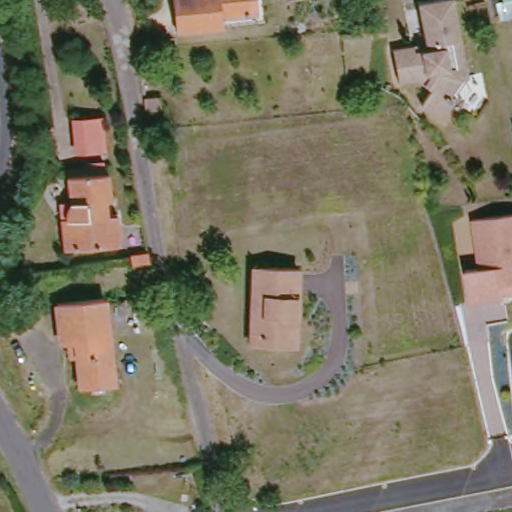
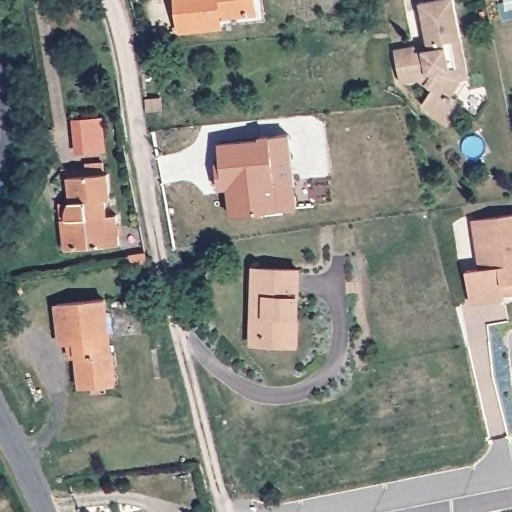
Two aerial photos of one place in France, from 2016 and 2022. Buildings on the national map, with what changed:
unchanged [(175,0),(257,0),(258,12),(222,14),(223,24),(176,28),(175,0)]
unchanged [(454,100),(449,96),(436,117),(415,102),(424,88),(411,78),(394,81),(387,46),(407,43),(408,49),(422,47),(413,0),(448,0),(459,64),(463,86),(454,100)]
unchanged [(150,112),(148,99),(163,98),(165,111),(150,112)]
unchanged [(103,116),(106,150),(73,154),(70,119),(103,116)]
new [(298,210),(230,216),(228,190),(218,191),(216,163),(221,162),(219,145),(260,140),(259,137),(289,136),(298,210)]
unchanged [(58,222),(64,220),(64,213),(68,208),(75,203),(71,177),(113,173),(116,198),(111,199),(113,214),(118,214),(122,245),(61,252),(58,222)]
unchanged [(499,291),(499,296),(466,300),(463,268),(476,266),(470,217),(512,211),(512,290),(499,291)]
unchanged [(294,272),(294,321),(289,321),(288,348),(248,347),(251,271),(294,272)]
unchanged [(100,298),(112,385),(81,388),(76,357),(67,358),(65,344),(59,345),(54,304),(100,298)]

